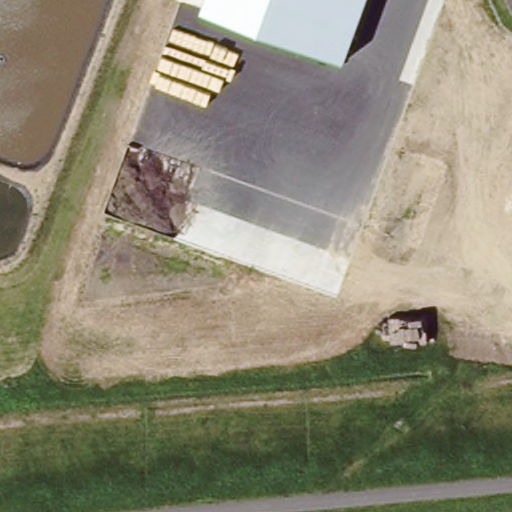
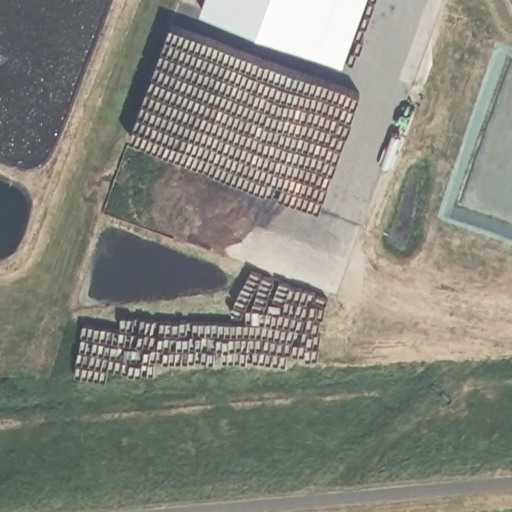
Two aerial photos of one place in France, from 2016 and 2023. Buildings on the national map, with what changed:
unchanged [(206,0),(363,0),(344,55),(204,7),(206,0)]

